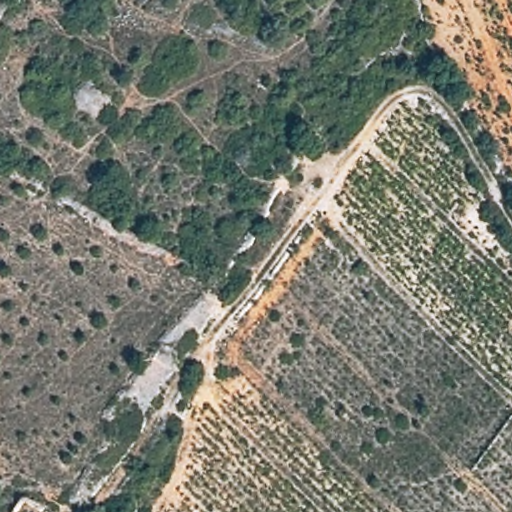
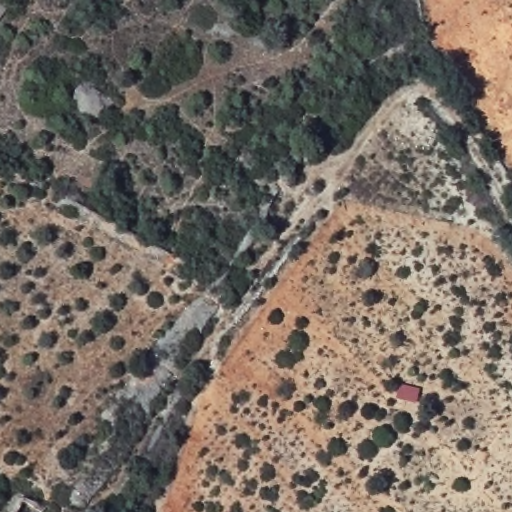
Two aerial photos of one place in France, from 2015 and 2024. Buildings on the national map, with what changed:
unchanged [(41,503),(35,512),(8,512),(24,491),(41,503)]

